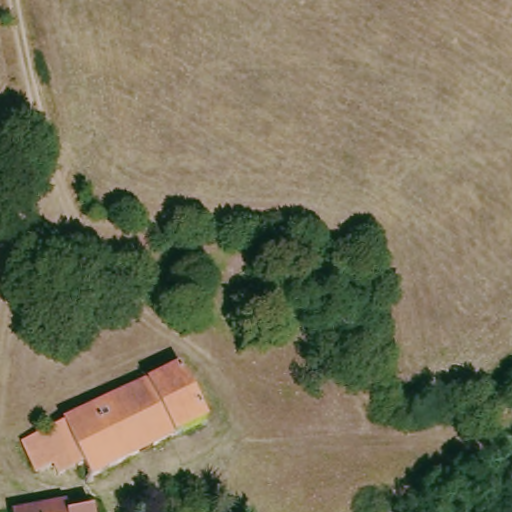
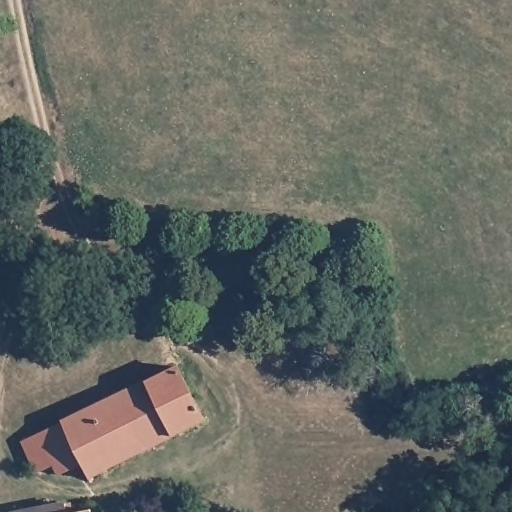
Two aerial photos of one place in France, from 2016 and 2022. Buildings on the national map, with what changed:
unchanged [(92,474),(84,458),(60,469),(55,458),(35,467),(22,441),(181,364),(207,418),(92,474)]
unchanged [(68,497),(68,501),(80,499),(81,507),(98,504),(99,512),(12,512),(11,508),(68,497)]

